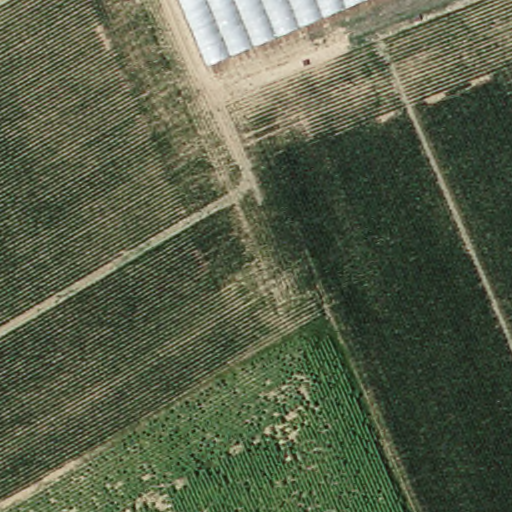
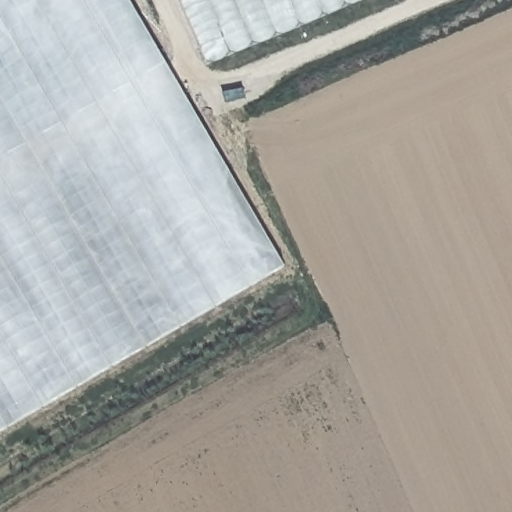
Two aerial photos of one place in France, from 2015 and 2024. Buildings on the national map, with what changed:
new [(0,430),(0,0),(129,0),(284,269),(0,430)]
new [(365,0),(209,65),(182,0),(365,0)]
demolished [(351,0),(364,0),(353,5),(351,0)]

